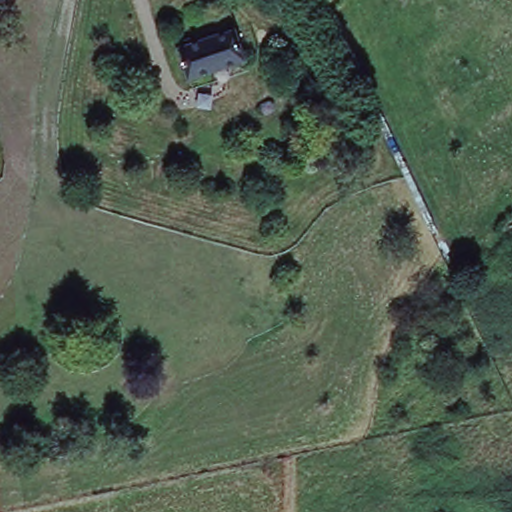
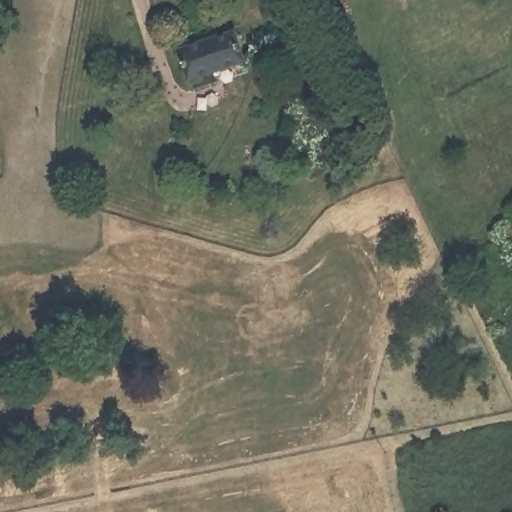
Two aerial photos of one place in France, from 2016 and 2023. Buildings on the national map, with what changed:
unchanged [(248,58),(192,75),(179,37),(189,32),(192,40),(238,27),(248,58)]

